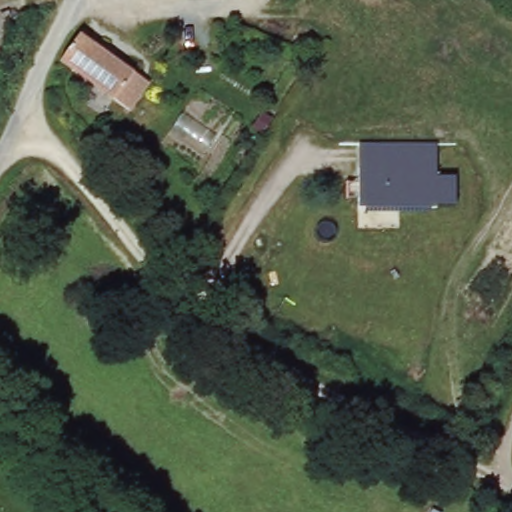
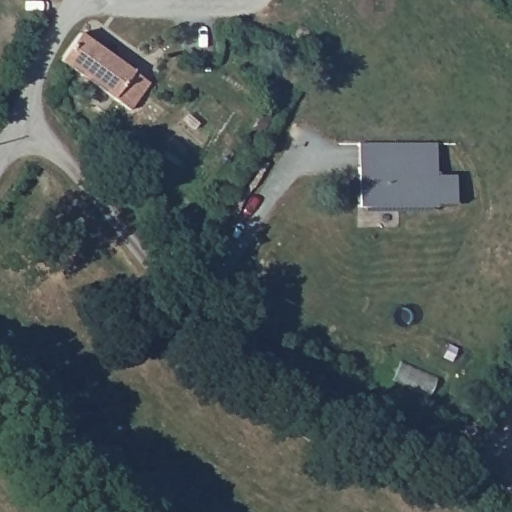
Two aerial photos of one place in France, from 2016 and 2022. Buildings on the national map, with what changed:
unchanged [(63,1),(39,0),(63,0),(63,1)]
unchanged [(151,83),(131,113),(59,66),(80,32),(151,83)]
unchanged [(358,210),(360,144),(437,143),(437,176),(456,176),(456,210),(358,210)]

